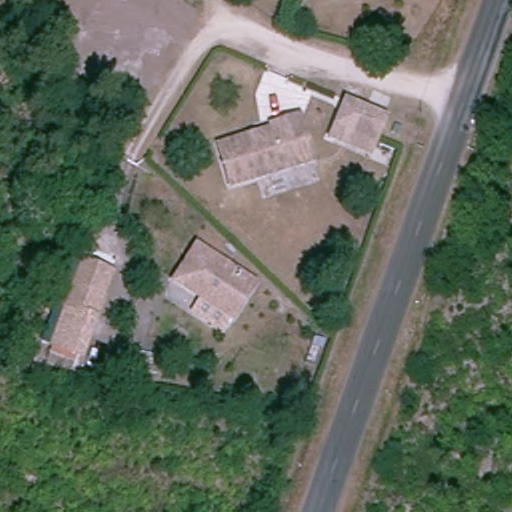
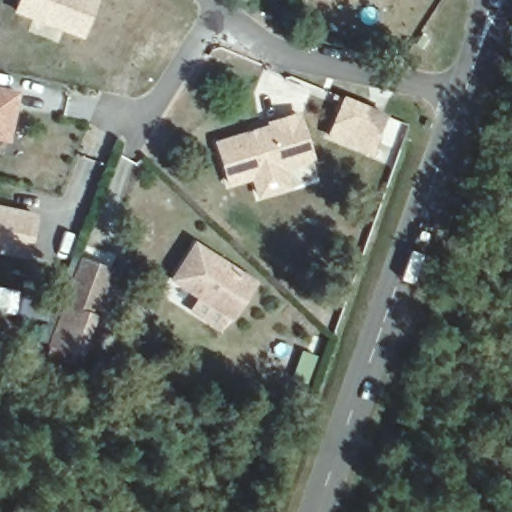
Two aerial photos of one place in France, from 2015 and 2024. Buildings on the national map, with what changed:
new [(19,0),(99,0),(84,39),(13,14),(19,0)]
new [(11,142),(0,140),(0,89),(18,93),(11,142)]
unchanged [(357,156),(335,147),(350,109),(389,124),(381,149),(376,163),(357,156)]
unchanged [(215,144),(243,135),(255,132),(269,127),(268,123),(296,115),(310,159),(227,184),(215,144)]
new [(28,259),(0,254),(0,206),(38,214),(28,259)]
unchanged [(227,316),(170,278),(192,245),(250,283),(227,316)]
unchanged [(87,265),(116,274),(100,322),(71,312),(87,265)]
unchanged [(88,358),(59,348),(71,312),(100,322),(88,358)]

